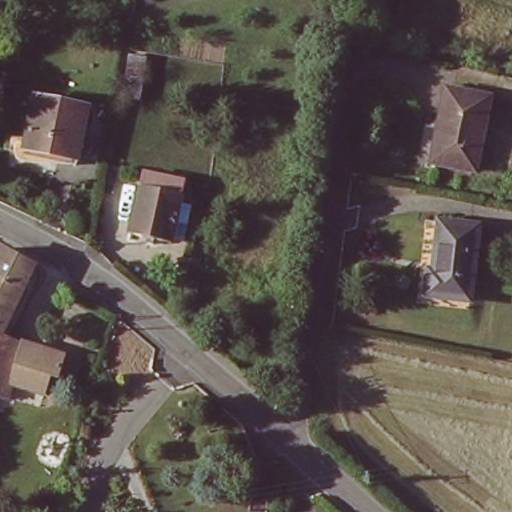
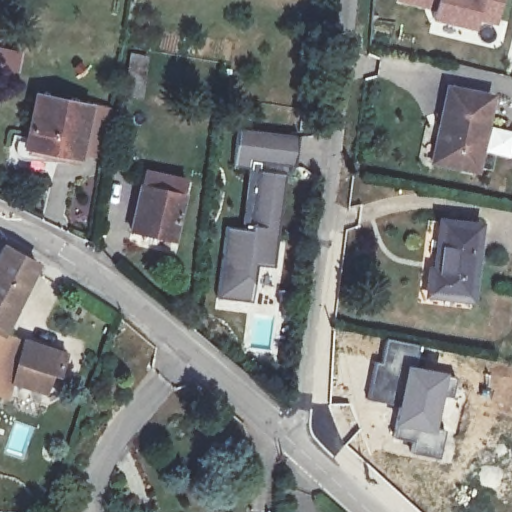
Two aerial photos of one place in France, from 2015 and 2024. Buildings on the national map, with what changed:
new [(465,21),(463,30),(423,21),(425,11),(391,2),(392,0),(492,0),(486,26),(465,21)]
new [(17,76),(0,72),(0,45),(22,49),(17,76)]
unchanged [(146,79),(142,102),(120,98),(124,76),(146,79)]
unchanged [(490,89),(476,169),(427,161),(440,84),(490,89)]
unchanged [(87,104),(79,157),(27,150),(34,97),(87,104)]
new [(254,169),(229,166),(233,128),(301,135),(298,166),(283,165),(282,172),(262,170),(254,169)]
new [(255,230),(248,229),(254,169),(261,170),(282,172),(272,266),(254,264),(250,302),(215,298),(223,226),(247,229),(255,230)]
unchanged [(188,187),(172,245),(131,235),(147,176),(188,187)]
unchanged [(478,221),(470,298),(422,293),(425,265),(435,266),(440,216),(478,221)]
unchanged [(19,294),(8,316),(0,331),(0,253),(30,269),(19,294)]
unchanged [(5,396),(0,396),(0,334),(18,343),(29,346),(43,349),(60,352),(60,353),(60,354),(55,372),(49,370),(46,382),(11,374),(5,396)]
new [(439,458),(410,453),(412,440),(393,436),(397,404),(368,398),(375,361),(380,362),(385,338),(420,345),(416,366),(455,376),(450,398),(440,396),(435,428),(444,430),(439,458)]

